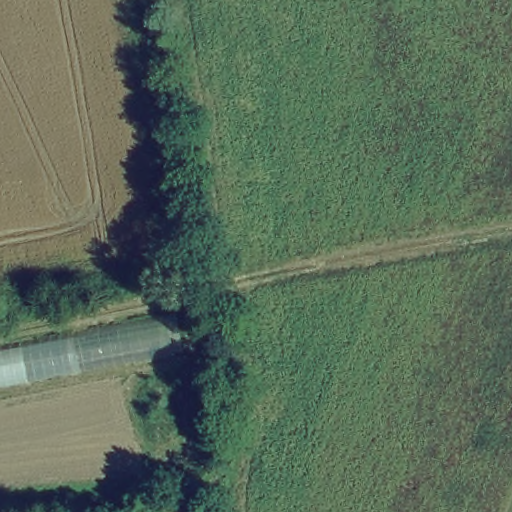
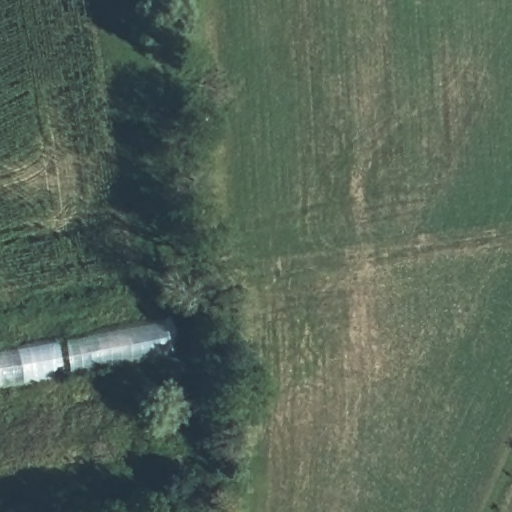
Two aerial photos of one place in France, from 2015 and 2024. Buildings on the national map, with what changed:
unchanged [(181,357),(0,391),(0,347),(173,315),(181,357)]

